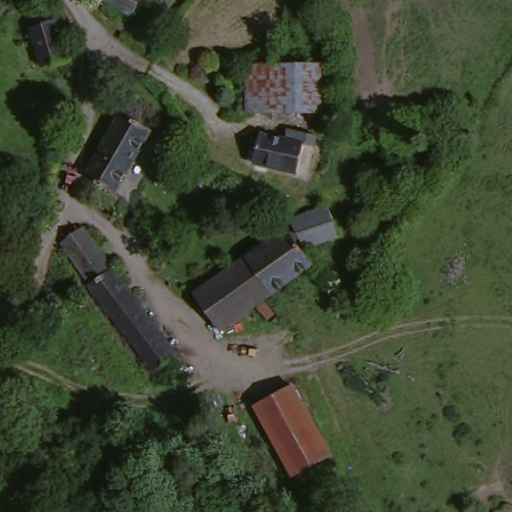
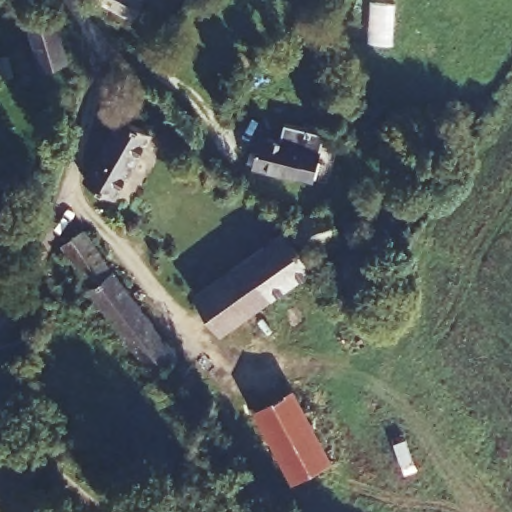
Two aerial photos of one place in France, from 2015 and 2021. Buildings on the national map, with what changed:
unchanged [(148,1),(138,26),(79,1),(79,0),(146,0),(148,1)]
unchanged [(63,69),(62,72),(44,77),(33,34),(53,29),(63,69)]
unchanged [(318,69),(318,129),(318,132),(269,133),(268,119),(242,120),(241,69),(318,69)]
unchanged [(85,181),(121,117),(152,136),(116,199),(85,181)]
unchanged [(256,142),(293,149),(294,140),(314,143),(312,152),(306,182),(250,171),(256,142)]
unchanged [(298,257),(288,231),(326,215),(336,244),(301,257),(299,258),(298,257)]
unchanged [(111,278),(85,295),(85,296),(51,253),(78,237),(111,278)]
unchanged [(191,302),(283,237),(298,257),(299,258),(311,275),(241,324),(218,341),(191,302)]
unchanged [(149,379),(107,324),(91,304),(85,296),(85,295),(111,278),(175,363),(159,376),(149,379)]
unchanged [(251,412),(288,391),(326,461),(291,482),(251,412)]
unchanged [(0,512),(0,507),(4,512),(0,512)]

